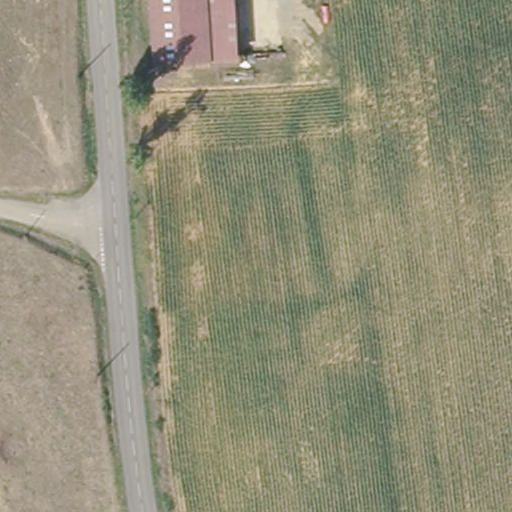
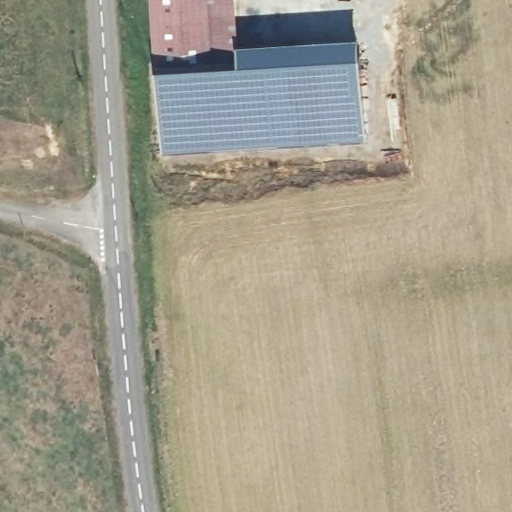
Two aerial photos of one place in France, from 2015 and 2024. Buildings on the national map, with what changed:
demolished [(157,56),(150,0),(240,0),(247,43),(157,56)]
new [(358,34),(365,142),(162,154),(156,67),(151,0),(235,0),(238,41),(358,34)]

